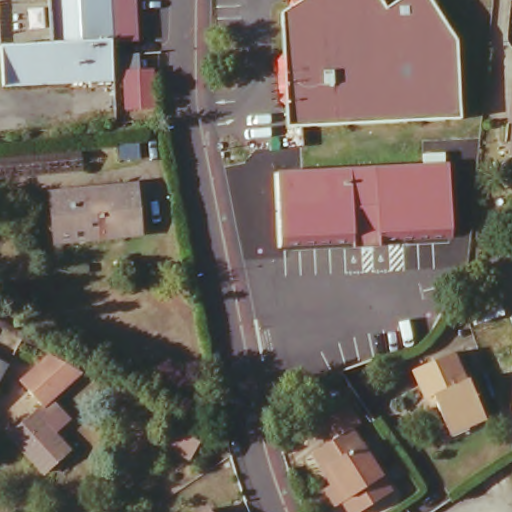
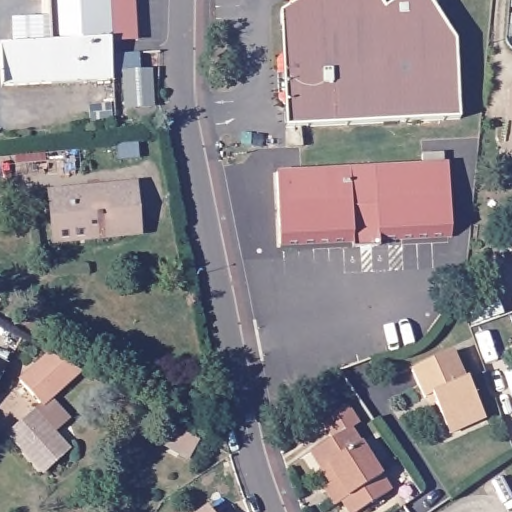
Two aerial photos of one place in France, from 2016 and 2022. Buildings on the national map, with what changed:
unchanged [(113,38),(109,39),(111,81),(0,87),(0,44),(49,42),(47,0),(110,0),(113,38)]
unchanged [(137,36),(113,38),(110,0),(134,0),(137,36)]
unchanged [(274,57),(279,57),(276,13),(286,4),(286,0),(377,0),(381,6),(387,0),(432,0),(433,1),(429,5),(448,32),(453,43),(456,117),(286,126),(282,125),(280,100),(276,101),(274,57)]
unchanged [(130,105),(129,95),(127,70),(152,68),(153,93),(155,103),(130,105)]
unchanged [(508,150),(504,150),(508,86),(512,86),(512,166),(507,166),(508,150)]
unchanged [(75,150),(76,164),(76,170),(0,178),(0,156),(75,150)]
unchanged [(278,167),(448,160),(449,233),(379,237),(378,242),(354,243),(353,238),(281,241),(278,167)]
unchanged [(131,185),(134,231),(50,237),(46,193),(131,185)]
unchanged [(77,371),(46,396),(63,417),(49,428),(63,446),(38,464),(13,431),(37,415),(31,407),(37,404),(26,390),(16,379),(46,354),(47,355),(77,371)]
unchanged [(446,434),(444,428),(430,398),(421,399),(411,374),(449,357),(461,383),(467,384),(479,413),(481,419),(446,434)]
unchanged [(3,365),(0,370),(0,363),(3,365)]
unchanged [(334,478),(315,449),(333,437),(323,422),(349,406),(358,422),(353,426),(381,478),(387,484),(388,490),(353,512),(348,512),(341,500),(331,505),(320,488),(334,478)]
unchanged [(157,443),(168,426),(198,443),(188,461),(157,443)]
unchanged [(205,512),(203,512),(205,511),(205,512)]

